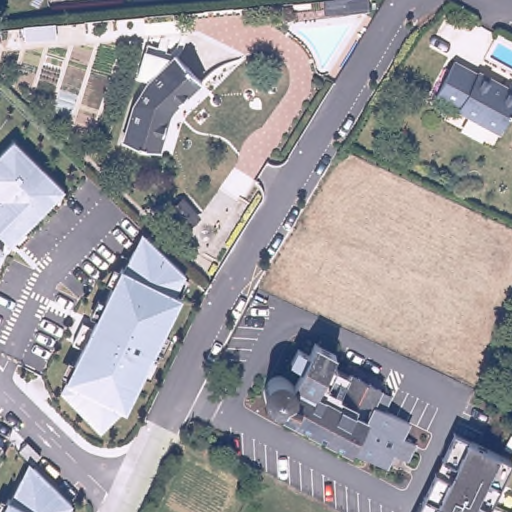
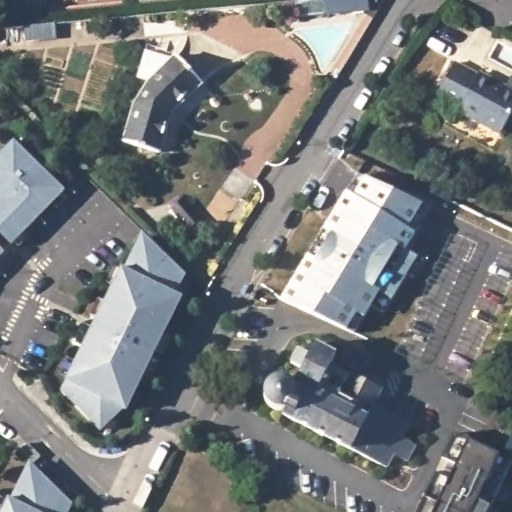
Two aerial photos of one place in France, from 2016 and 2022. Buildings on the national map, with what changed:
unchanged [(367,0),(369,15),(325,19),(324,5),(367,0)]
unchanged [(119,137),(130,102),(142,82),(150,72),(140,65),(147,41),(170,52),(171,51),(197,78),(170,105),(165,111),(164,116),(155,148),(119,137)]
unchanged [(455,61),(478,74),(480,72),(512,90),(512,110),(499,134),(457,112),(458,110),(435,98),(455,61)]
unchanged [(0,199),(0,155),(14,141),(67,195),(12,250),(0,236),(0,201),(1,200),(0,199)]
new [(344,190),(351,194),(361,175),(426,203),(412,229),(417,232),(406,250),(417,256),(391,298),(380,292),(365,319),(356,315),(346,331),(279,300),(344,190)]
unchanged [(183,199),(200,218),(190,227),(172,208),(183,199)]
unchanged [(191,274),(186,300),(128,412),(104,433),(62,389),(65,380),(113,285),(122,265),(141,231),(191,274)]
unchanged [(0,262),(0,247),(7,255),(0,262)]
unchanged [(375,405),(408,425),(403,440),(415,446),(408,462),(394,455),(386,470),(352,448),(286,411),(278,411),(272,410),(265,404),(265,392),(268,385),(276,380),(284,380),(292,383),(301,367),(290,362),(297,347),(308,348),(311,343),(336,355),(382,390),(375,405)]
unchanged [(465,470),(468,472),(451,510),(448,508),(447,512),(417,512),(453,433),(477,445),(465,470)]
unchanged [(490,512),(447,512),(448,508),(451,510),(468,472),(465,470),(477,445),(512,461),(512,463),(490,512)]
unchanged [(70,512),(1,512),(7,498),(29,461),(73,503),(70,512)]

